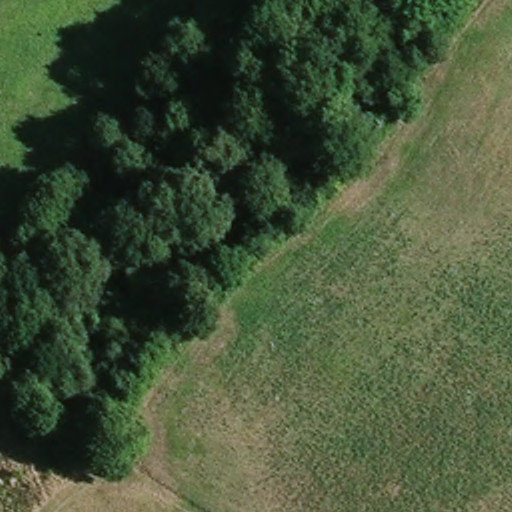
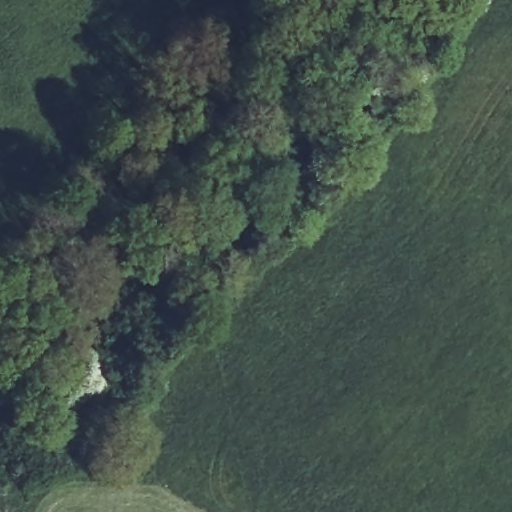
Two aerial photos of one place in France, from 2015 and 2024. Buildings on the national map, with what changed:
[]

